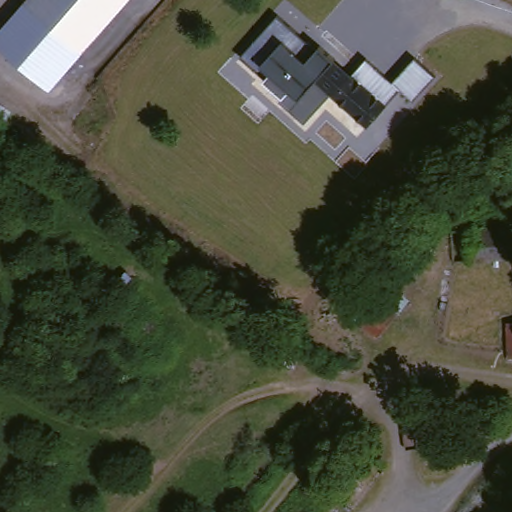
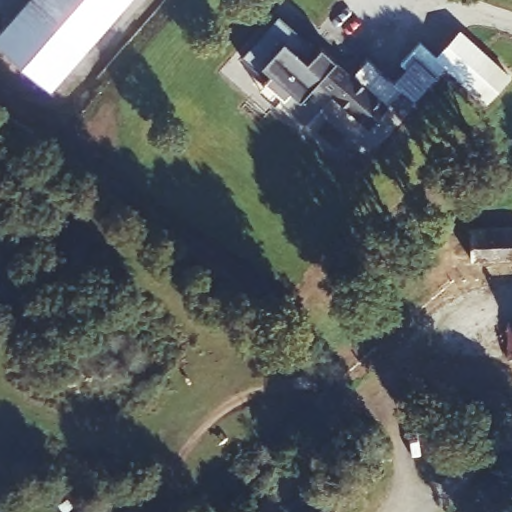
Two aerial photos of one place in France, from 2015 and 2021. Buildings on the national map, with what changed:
unchanged [(31,4),(35,0),(131,0),(86,51),(31,4)]
unchanged [(51,88),(0,44),(0,39),(31,4),(86,51),(51,88)]
unchanged [(319,41),(338,57),(328,67),(343,81),(368,57),(393,81),(416,57),(437,76),(413,101),(401,89),(367,123),(333,95),(336,91),(318,76),(298,96),(273,73),(271,72),(258,86),(236,65),(249,52),(249,51),(271,26),(286,11),(309,32),(296,46),(306,55),(319,41)]
new [(401,61),(419,41),(435,55),(461,27),(511,74),(484,102),(446,66),(437,76),(416,57),(406,67),(401,61)]
unchanged [(507,225),(508,260),(471,262),(471,226),(507,225)]

